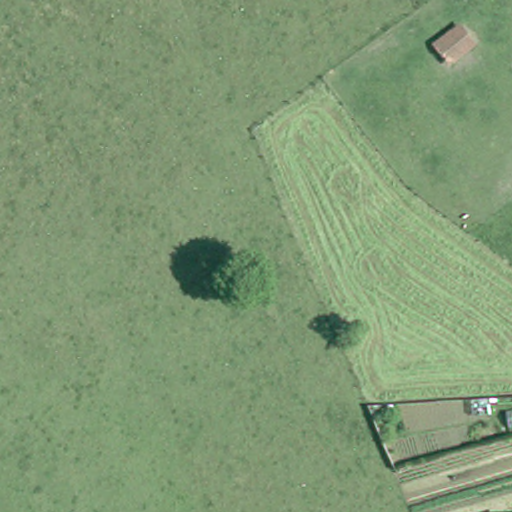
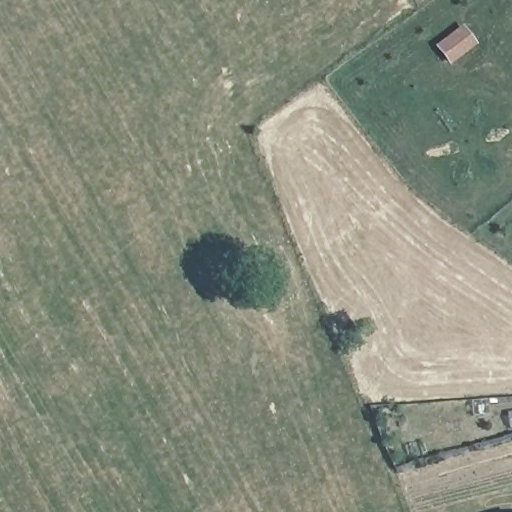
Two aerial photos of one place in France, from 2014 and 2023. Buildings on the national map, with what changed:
unchanged [(450,62),(438,47),(462,28),(474,44),(450,62)]

